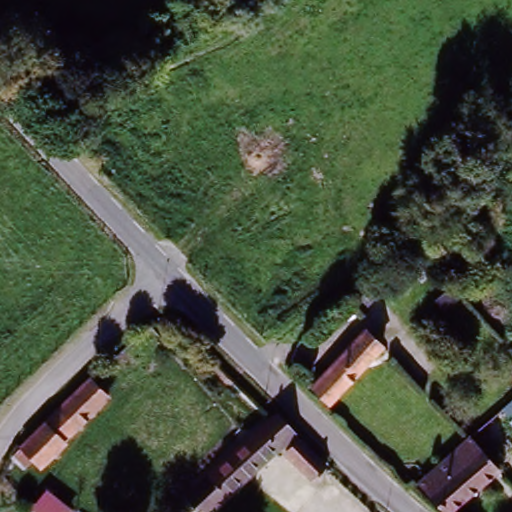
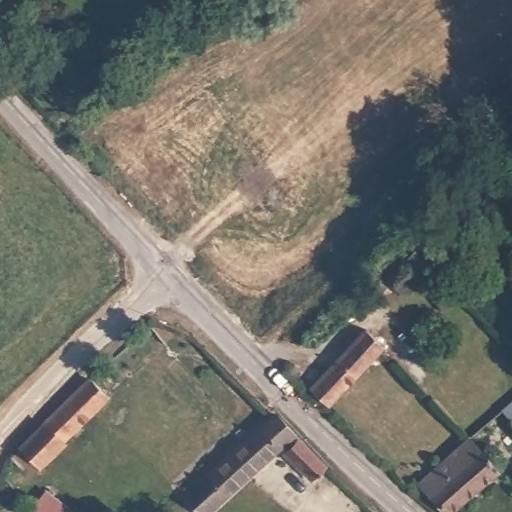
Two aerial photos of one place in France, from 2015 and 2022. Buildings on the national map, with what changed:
unchanged [(151,326),(165,345),(107,390),(92,372),(151,326)]
unchanged [(327,403),(311,387),(365,329),(369,332),(372,329),(379,334),(375,338),(382,344),(327,403)]
unchanged [(89,377),(105,392),(40,457),(25,442),(89,377)]
unchanged [(511,414),(512,413),(512,415),(511,414)]
unchanged [(190,495),(275,416),(292,433),(208,512),(190,495)]
unchanged [(500,471),(452,512),(451,512),(425,482),(472,441),(500,471)]
unchanged [(300,442),(324,467),(317,476),(313,473),(308,478),(287,457),(300,442)]
unchanged [(68,512),(42,512),(35,506),(48,491),(70,508),(68,512)]

